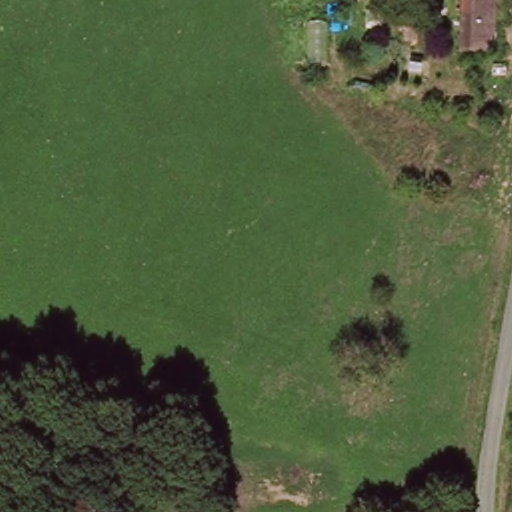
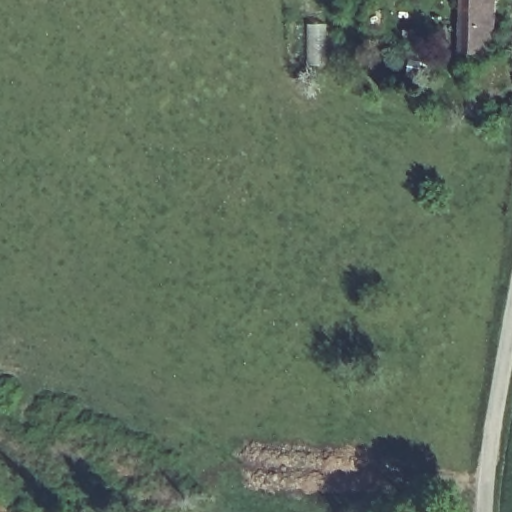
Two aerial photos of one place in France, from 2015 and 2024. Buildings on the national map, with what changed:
unchanged [(453,0),(487,0),(487,52),(453,52),(453,0)]
unchanged [(359,27),(359,8),(389,9),(389,28),(359,27)]

